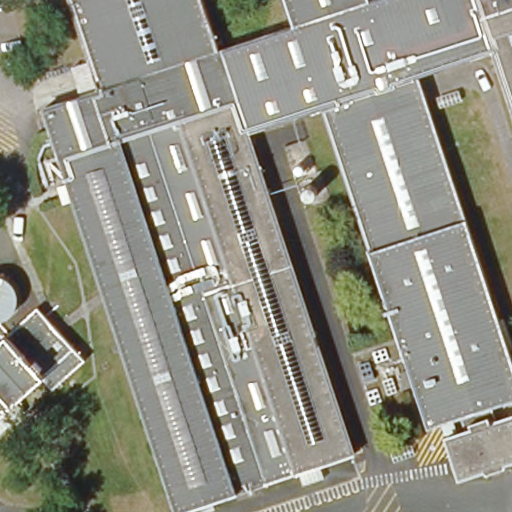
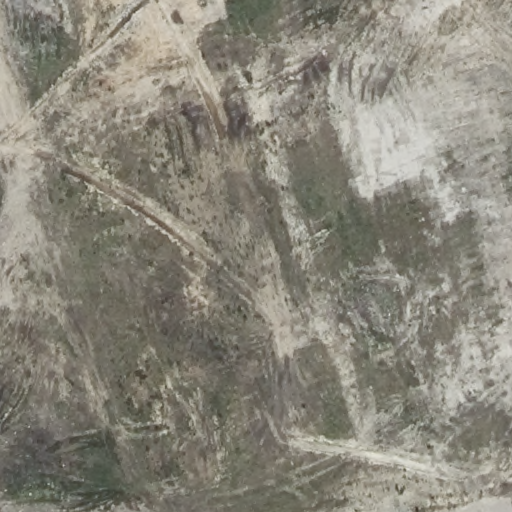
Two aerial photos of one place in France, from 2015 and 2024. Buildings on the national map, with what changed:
demolished [(512,129),(489,59),(400,89),(503,407),(487,413),(491,426),(510,419),(512,425),(512,467),(505,470),(504,472),(483,479),(481,477),(457,483),(442,441),(462,435),(457,422),(437,428),(332,111),(247,138),(352,460),(189,512),(170,512),(41,111),(93,94),(63,0),(198,0),(217,54),(291,30),(281,0),(367,0),(368,4),(380,0),(512,0),(512,129)]
demolished [(7,283),(12,292),(15,306),(7,317),(0,320),(0,279),(7,283)]
demolished [(33,310),(82,362),(52,387),(42,376),(0,414),(0,339),(33,310)]

